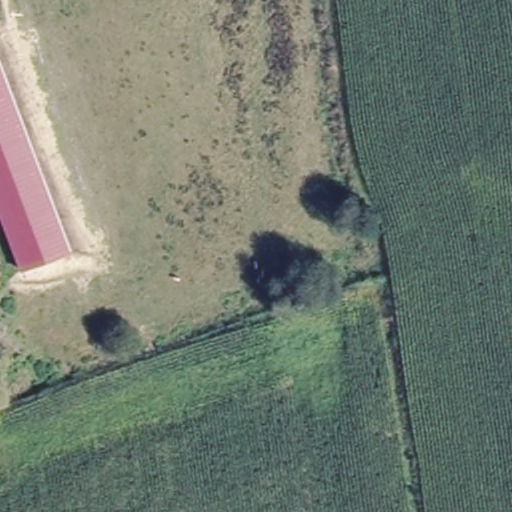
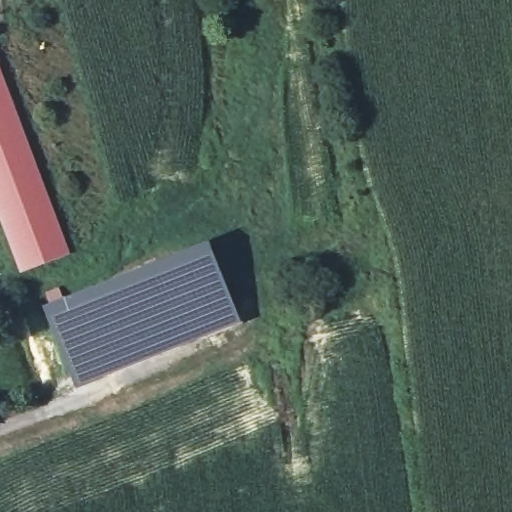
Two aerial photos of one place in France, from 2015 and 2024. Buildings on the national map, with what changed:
unchanged [(18,273),(0,225),(0,69),(71,254),(18,273)]
new [(48,303),(44,292),(59,287),(64,297),(210,240),(243,323),(76,389),(42,306),(48,303)]

